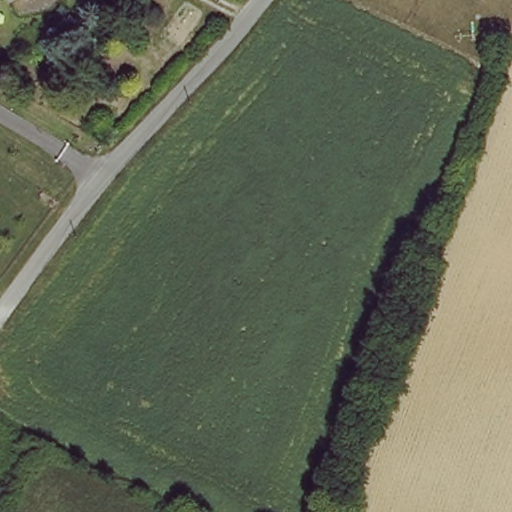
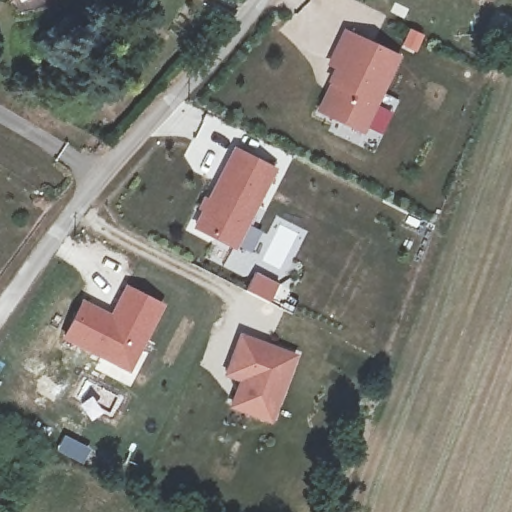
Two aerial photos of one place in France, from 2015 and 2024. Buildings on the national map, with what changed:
new [(339,78),(345,64),(338,61),(353,29),(405,53),(370,127),(331,109),(327,107),(341,79),(339,78)]
new [(272,170),(230,250),(192,229),(233,148),(272,170)]
new [(129,373),(62,339),(81,300),(111,314),(126,285),(165,305),(129,373)]
new [(241,336),(293,357),(271,419),(233,406),(243,379),(229,374),(241,336)]

